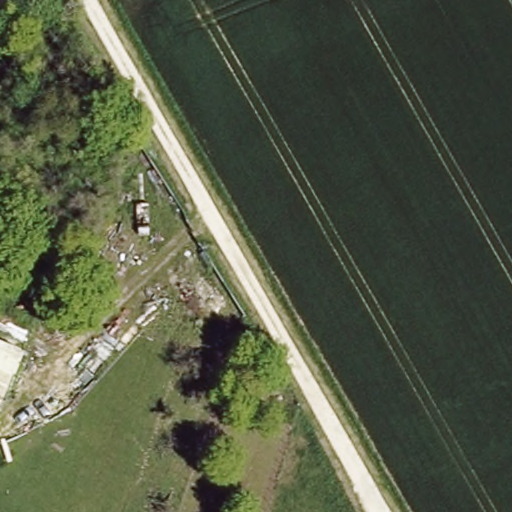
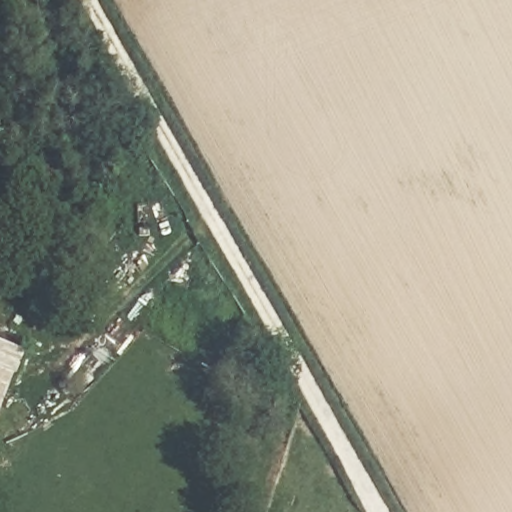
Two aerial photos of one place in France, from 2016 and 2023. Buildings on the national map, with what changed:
unchanged [(0,413),(0,346),(24,354),(0,413)]

